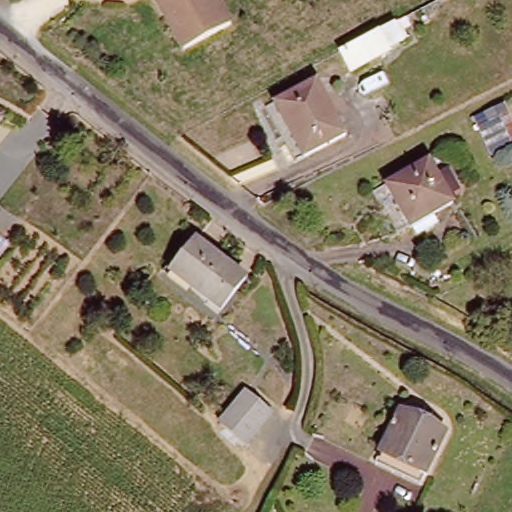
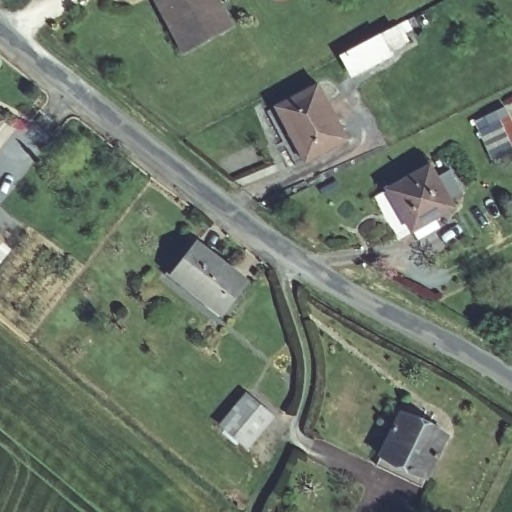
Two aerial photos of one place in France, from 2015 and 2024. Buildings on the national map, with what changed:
unchanged [(155,0),(215,0),(229,27),(183,51),(155,0)]
unchanged [(385,49),(386,52),(349,72),(340,53),(393,26),(400,40),(385,49)]
unchanged [(302,162),(275,108),(317,87),(344,141),(302,162)]
unchanged [(492,161),(472,122),(485,115),(490,124),(510,117),(512,121),(512,151),(492,161)]
unchanged [(0,118),(2,119),(0,122),(0,118)]
unchanged [(404,229),(384,186),(442,159),(462,203),(445,211),(450,220),(427,231),(422,221),(404,229)]
unchanged [(281,205),(289,196),(295,202),(289,211),(281,205)]
unchanged [(0,240),(4,243),(0,248),(0,240)]
unchanged [(222,312),(174,273),(199,243),(246,282),(222,312)]
unchanged [(222,423),(245,394),(274,415),(250,445),(222,423)]
unchanged [(420,491),(377,467),(384,454),(382,453),(404,410),(449,434),(426,477),(427,478),(420,491)]

